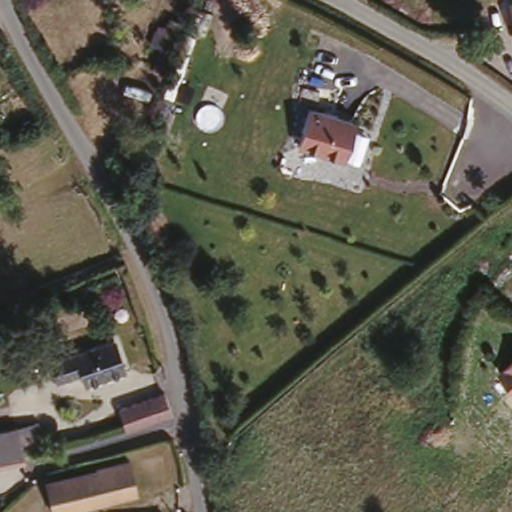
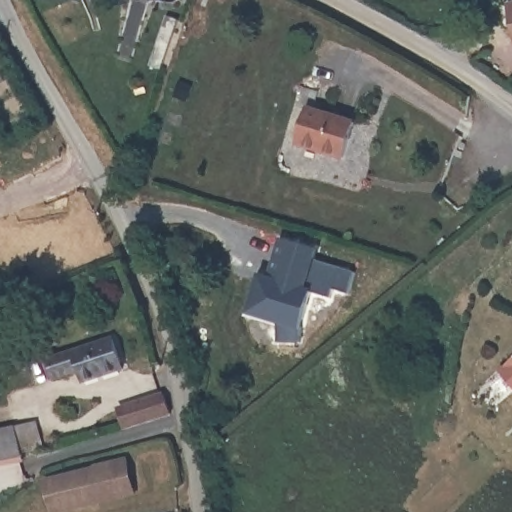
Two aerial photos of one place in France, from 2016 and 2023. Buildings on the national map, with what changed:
unchanged [(506,0),(512,0),(512,30),(506,0)]
unchanged [(169,16),(180,21),(162,69),(152,65),(169,16)]
unchanged [(315,102),(303,98),(310,79),(327,86),(321,103),(360,119),(348,155),(301,139),(315,102)]
new [(351,273),(346,290),(333,286),(330,296),(312,291),(300,331),(248,316),(260,275),(270,278),(281,240),(318,251),(315,263),(351,273)]
unchanged [(126,363),(86,375),(82,365),(57,371),(50,348),(58,345),(60,350),(118,334),(126,363)]
unchanged [(502,372),(512,364),(512,384),(502,372)]
unchanged [(169,405),(124,420),(117,398),(161,382),(169,405)]
unchanged [(0,422),(40,415),(47,445),(0,456),(0,422)]
unchanged [(131,446),(136,482),(51,503),(47,479),(47,475),(97,460),(96,454),(131,446)]

